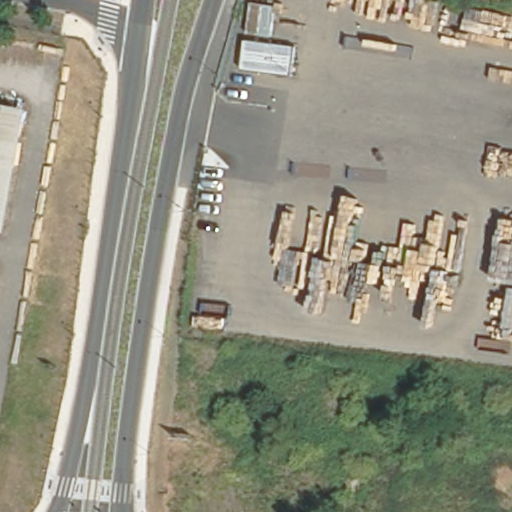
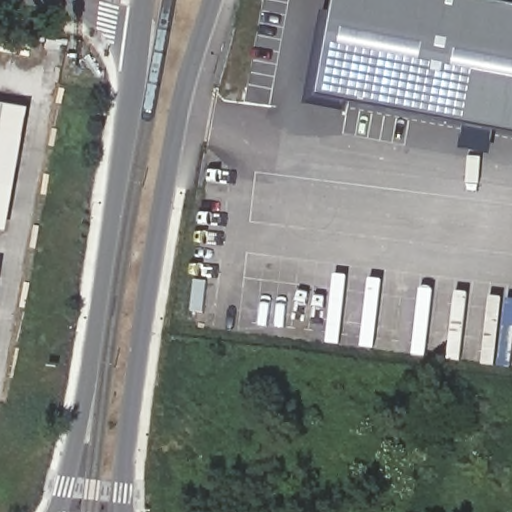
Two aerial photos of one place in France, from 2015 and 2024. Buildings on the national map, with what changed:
new [(315,100),(334,0),(457,0),(512,10),(512,137),(315,100)]
demolished [(295,38),(291,67),(240,60),(244,30),(295,38)]
unchanged [(7,232),(0,231),(0,104),(29,109),(7,232)]
unchanged [(0,269),(0,266),(1,266),(0,269)]

